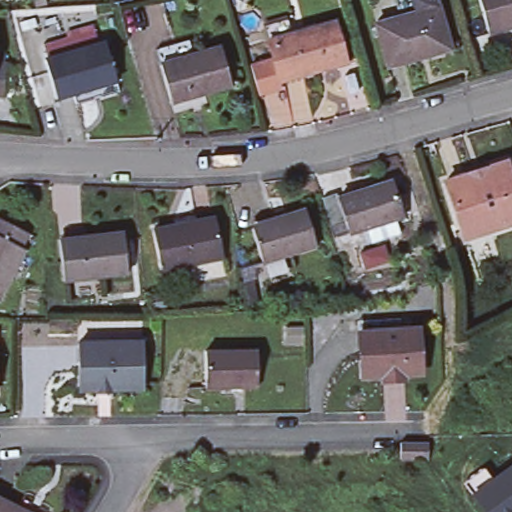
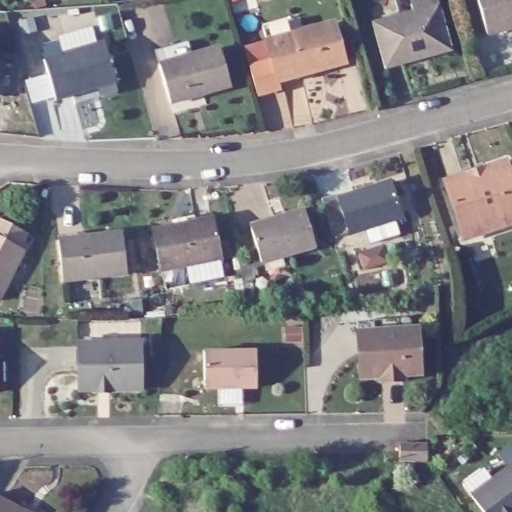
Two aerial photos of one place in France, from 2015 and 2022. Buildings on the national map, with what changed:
unchanged [(401,1),(407,0),(439,0),(441,9),(454,54),(390,72),(377,26),(406,19),(401,1)]
unchanged [(512,0),(512,23),(487,29),(480,0),(512,0)]
unchanged [(270,45),(266,31),(291,24),(295,39),(338,26),(349,64),(282,84),(285,93),(261,99),(253,70),(275,64),(270,45)]
unchanged [(47,64),(50,63),(48,51),(64,47),(71,44),(69,35),(97,28),(102,49),(106,48),(116,85),(120,96),(79,109),(75,97),(59,101),(47,64)]
unchanged [(232,94),(202,101),(170,109),(160,69),(157,55),(190,48),(194,61),(222,54),(232,94)]
unchanged [(0,95),(0,62),(5,62),(2,95),(0,95)]
unchanged [(507,161),(512,175),(512,224),(469,239),(448,182),(507,161)]
unchanged [(342,199),(397,180),(409,214),(354,234),(342,199)]
unchanged [(251,228),(271,222),(270,218),(303,208),(313,244),(261,261),(251,228)]
unchanged [(31,231),(23,245),(28,248),(1,300),(0,300),(0,216),(0,215),(31,231)]
unchanged [(157,230),(215,216),(225,254),(166,269),(157,230)]
unchanged [(64,243),(79,242),(79,239),(127,235),(130,275),(67,280),(64,243)]
unchanged [(422,376),(360,379),(357,333),(357,320),(398,319),(399,330),(419,329),(422,376)]
unchanged [(75,344),(139,342),(139,388),(76,389),(75,344)]
unchanged [(205,344),(257,344),(257,383),(205,383),(205,344)]
unchanged [(402,449),(427,444),(430,463),(405,468),(402,449)]
unchanged [(512,462),(512,512),(485,512),(469,493),(512,462)]
unchanged [(0,496),(36,512),(0,512),(0,496)]

